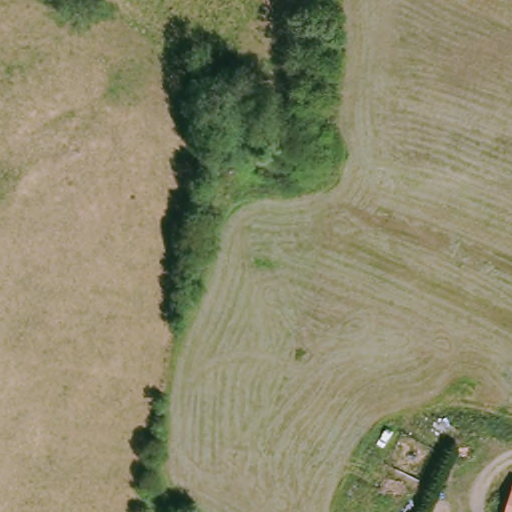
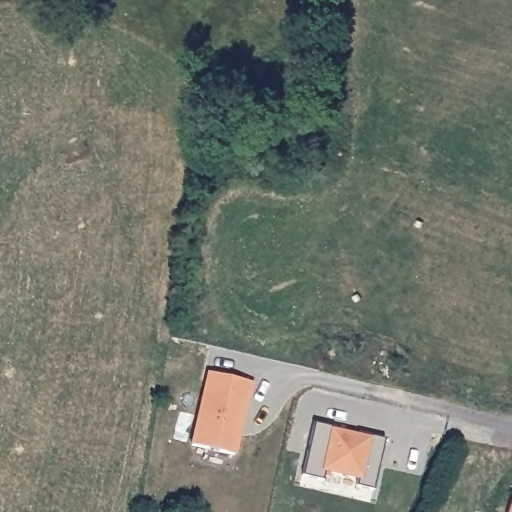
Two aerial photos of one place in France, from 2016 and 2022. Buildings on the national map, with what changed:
new [(191,446),(207,373),(252,383),(248,400),(246,400),(233,455),(191,446)]
new [(373,490),(355,486),(357,477),(324,470),(322,481),(301,476),(313,422),(334,427),(333,432),(366,440),(367,435),(385,438),(373,490)]
unchanged [(512,507),(512,512),(510,512),(512,507)]

